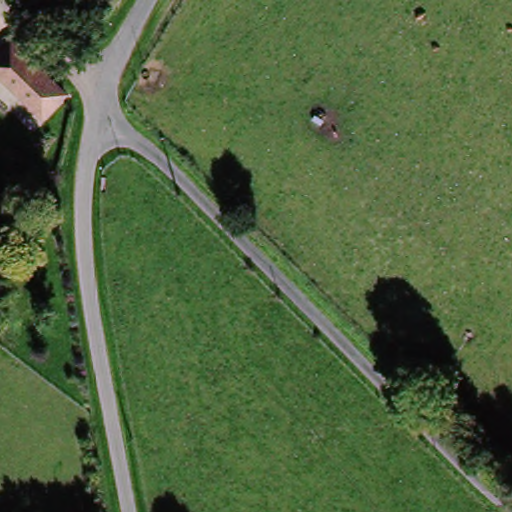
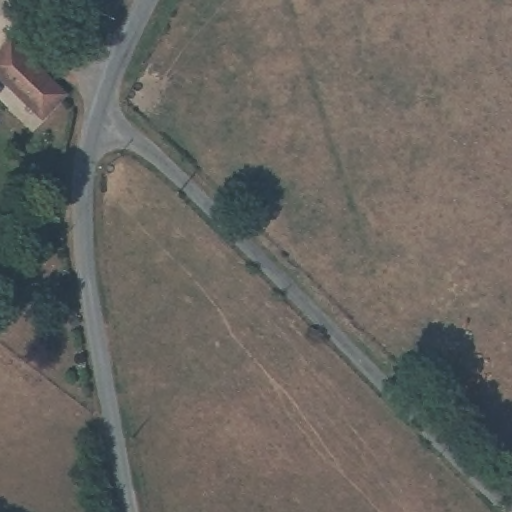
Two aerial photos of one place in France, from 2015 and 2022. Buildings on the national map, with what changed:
unchanged [(11,42),(69,96),(43,124),(0,81),(0,53),(11,42)]

